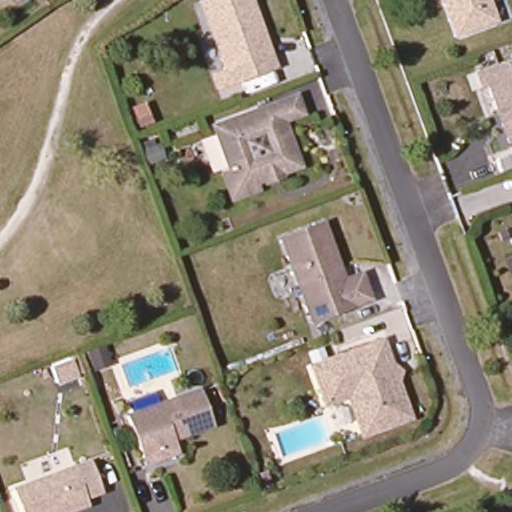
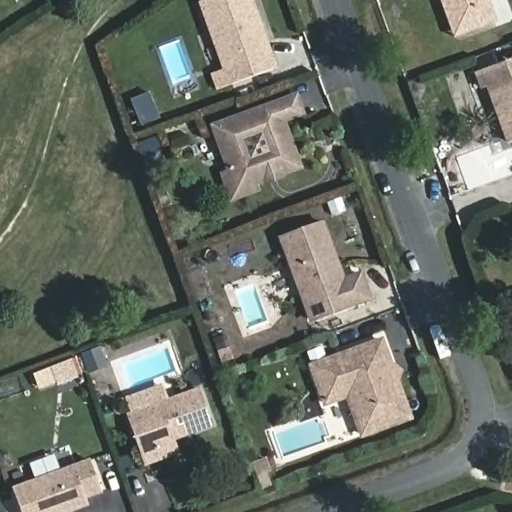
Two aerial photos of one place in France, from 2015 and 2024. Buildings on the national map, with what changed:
unchanged [(266,70),(223,85),(193,3),(201,0),(240,0),(266,70)]
unchanged [(494,22),(459,35),(446,0),(485,0),(494,22)]
unchanged [(512,142),(506,145),(500,130),(504,122),(500,115),(496,116),(486,90),(480,91),(475,75),(512,61),(512,142)]
unchanged [(299,115),(279,121),(295,167),(272,176),(269,173),(258,177),(260,181),(238,188),(229,180),(210,127),(293,98),(299,115)]
unchanged [(161,158),(141,165),(133,144),(154,137),(161,158)]
unchanged [(339,281),(357,275),(366,299),(308,320),(278,239),(319,224),(339,281)]
unchanged [(382,340),(412,418),(364,435),(349,392),(325,401),(314,367),(382,340)]
unchanged [(209,425),(170,438),(172,446),(138,458),(123,417),(196,390),(209,425)]
unchanged [(81,498),(84,505),(64,512),(16,512),(8,489),(86,461),(97,492),(81,498)]

